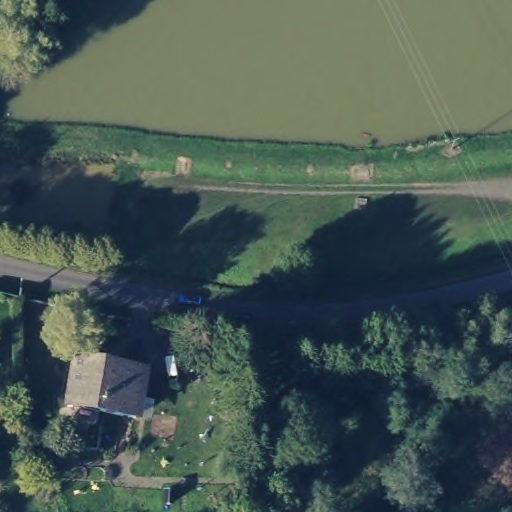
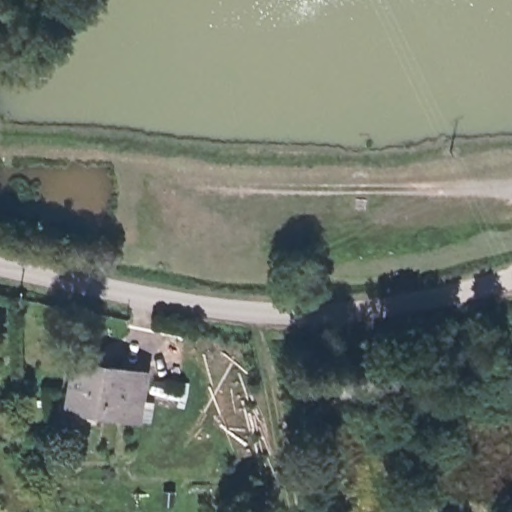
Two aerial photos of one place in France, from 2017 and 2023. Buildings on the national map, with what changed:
unchanged [(148,363),(145,408),(80,403),(81,358),(148,363)]

